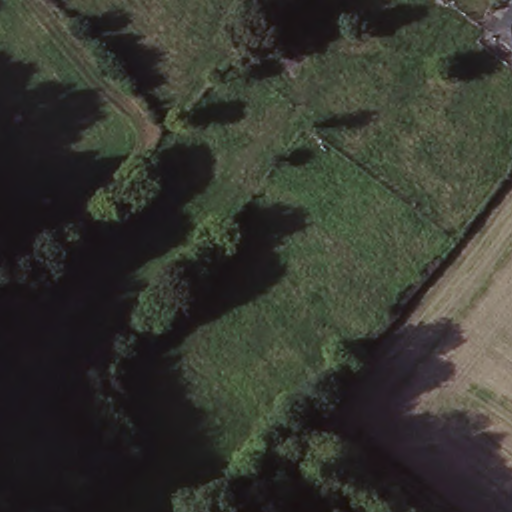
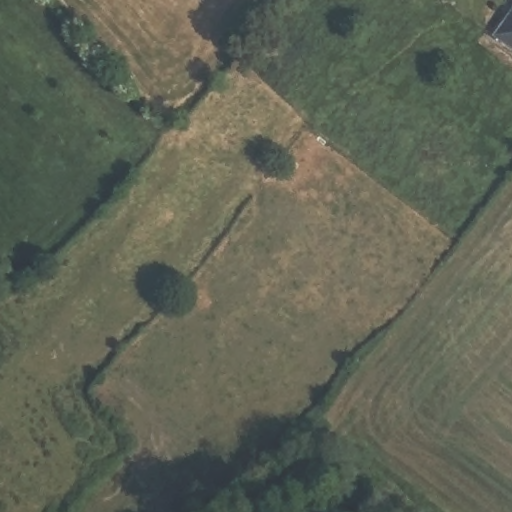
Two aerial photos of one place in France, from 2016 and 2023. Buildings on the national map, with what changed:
unchanged [(489,35),(512,5),(512,50),(511,52),(489,35)]

